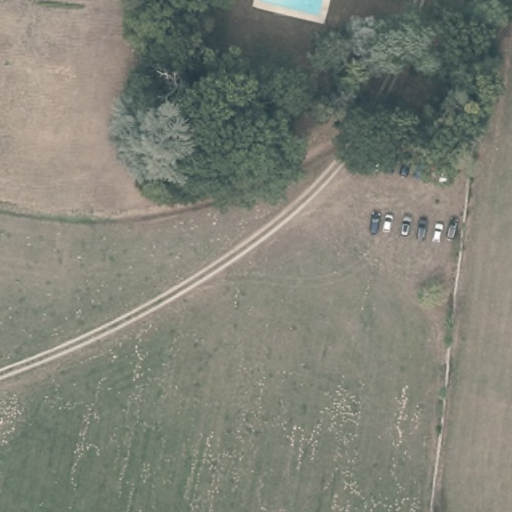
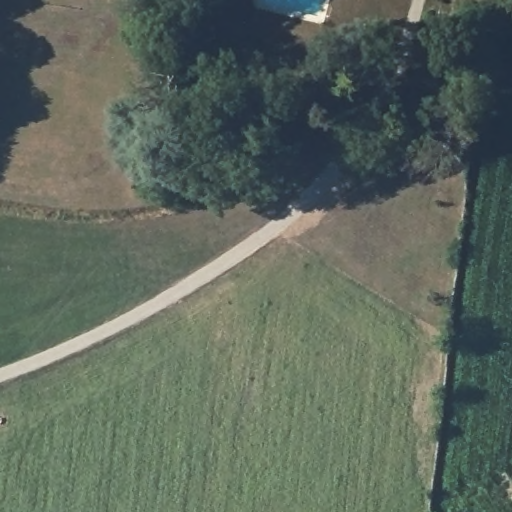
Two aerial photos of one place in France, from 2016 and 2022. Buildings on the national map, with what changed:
unchanged [(485,31),(488,0),(502,0),(497,32),(485,31)]

